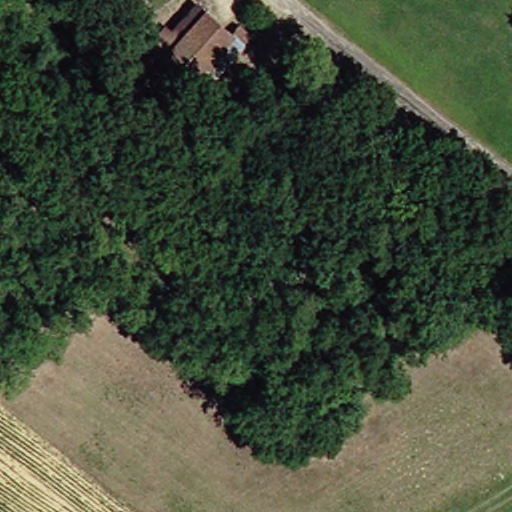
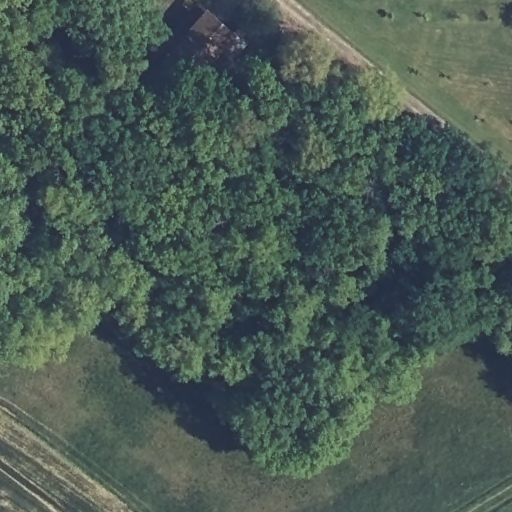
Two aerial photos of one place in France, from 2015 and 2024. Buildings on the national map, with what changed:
unchanged [(239,66),(224,86),(205,71),(192,86),(158,58),(144,46),(161,26),(166,31),(174,24),(164,13),(176,0),(190,0),(194,4),(204,11),(232,36),(241,44),(232,58),(239,66)]

